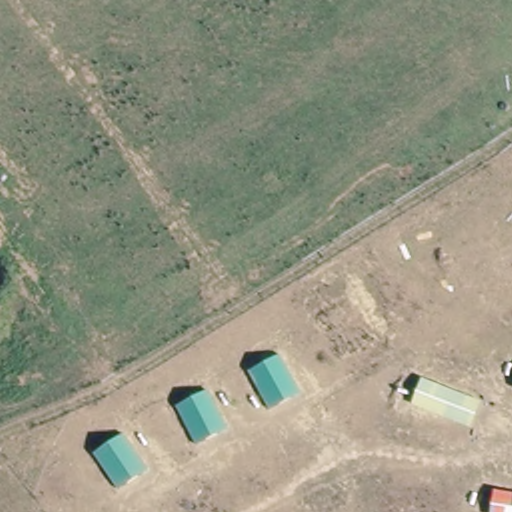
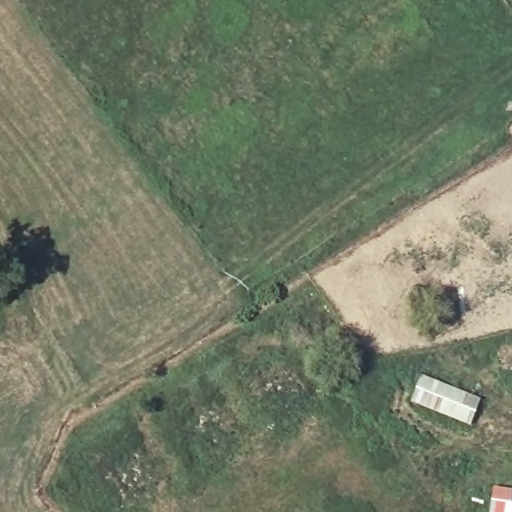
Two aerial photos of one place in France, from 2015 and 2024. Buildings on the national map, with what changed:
unchanged [(479,400),(471,425),(411,403),(422,376),(479,400)]
unchanged [(512,512),(488,512),(492,487),(512,490),(512,512)]

